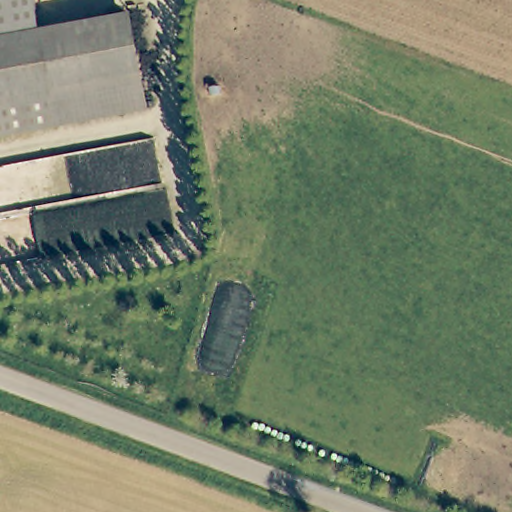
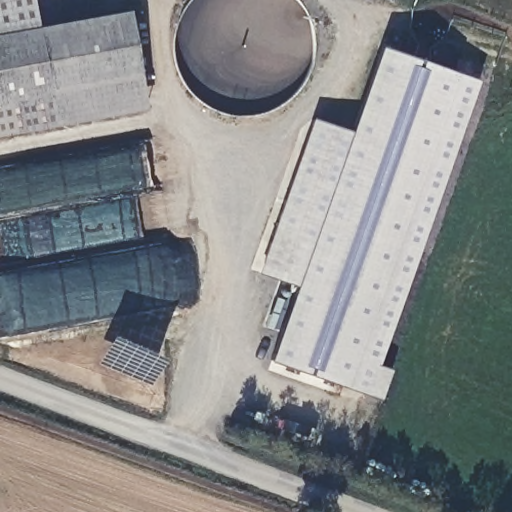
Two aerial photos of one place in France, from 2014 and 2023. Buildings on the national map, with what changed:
unchanged [(33,0),(39,30),(130,12),(149,110),(24,135),(0,139),(0,0),(33,0)]
new [(310,118),(352,132),(380,47),(478,80),(380,365),(395,370),(384,400),(270,361),(297,285),(259,272),(310,118)]

